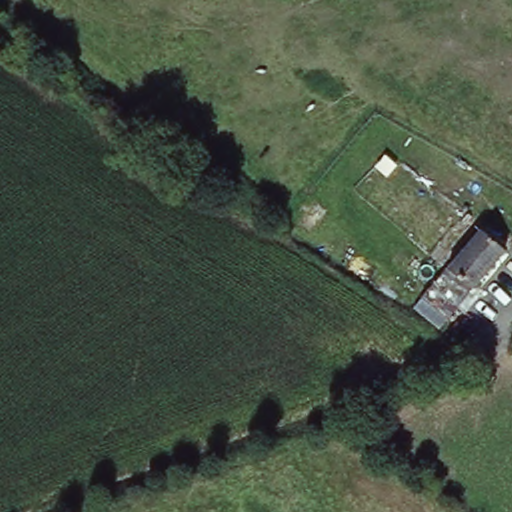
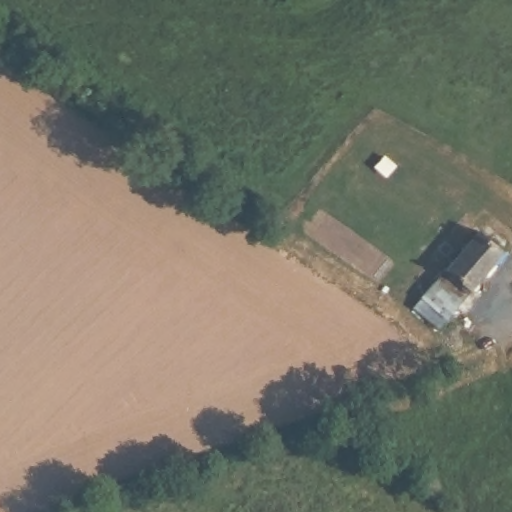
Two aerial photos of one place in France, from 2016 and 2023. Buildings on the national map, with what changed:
unchanged [(449,322),(423,302),(445,277),(442,270),(475,230),(504,254),(449,322)]

